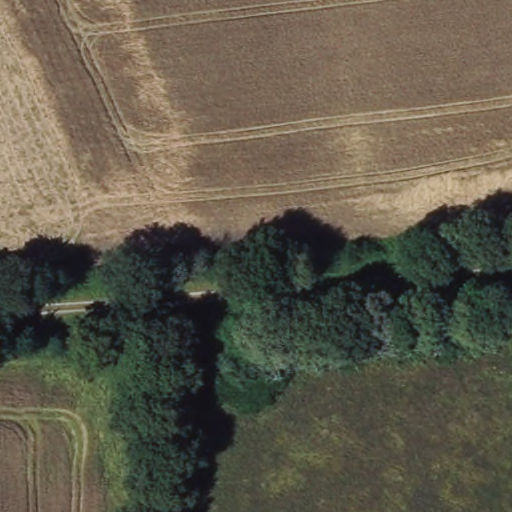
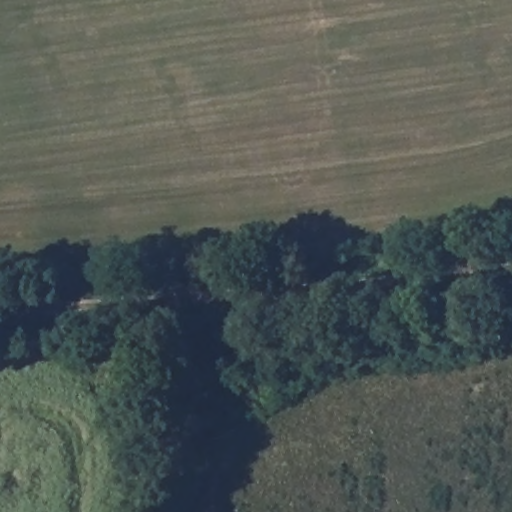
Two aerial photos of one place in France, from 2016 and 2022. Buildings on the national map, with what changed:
[]

